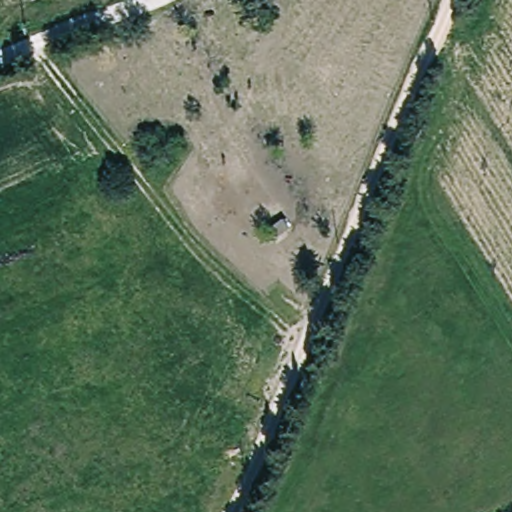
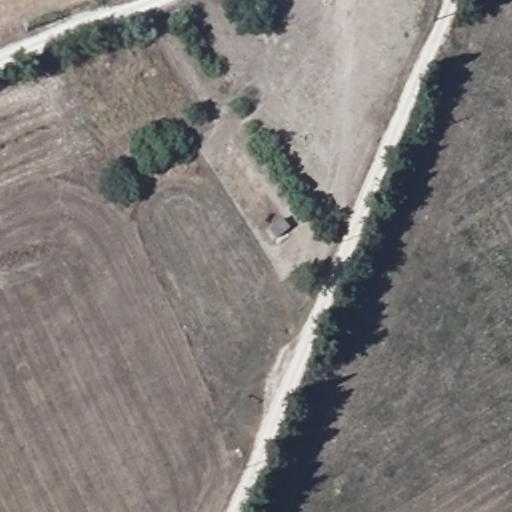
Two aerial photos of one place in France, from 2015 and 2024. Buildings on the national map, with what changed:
unchanged [(281,217),(293,231),(274,245),(262,233),(281,217)]

